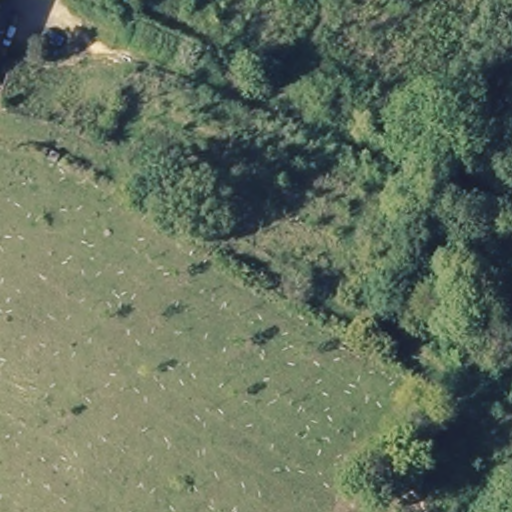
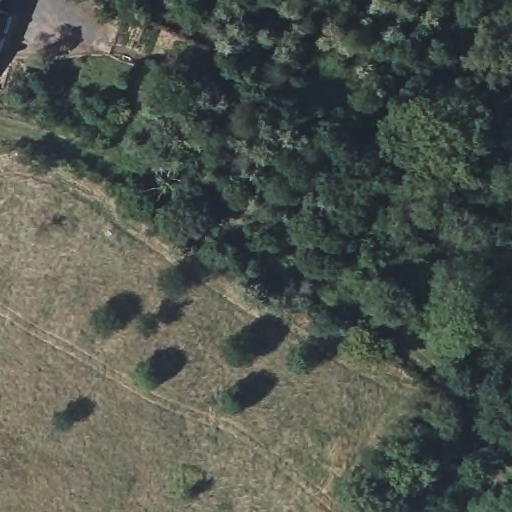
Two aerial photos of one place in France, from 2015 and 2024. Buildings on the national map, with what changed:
unchanged [(9,20),(0,44),(0,16),(9,20)]

